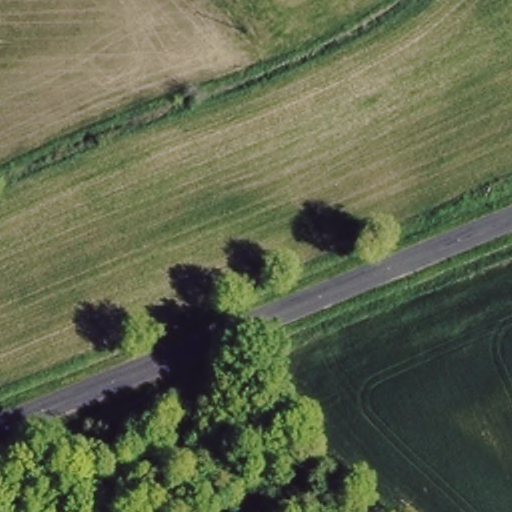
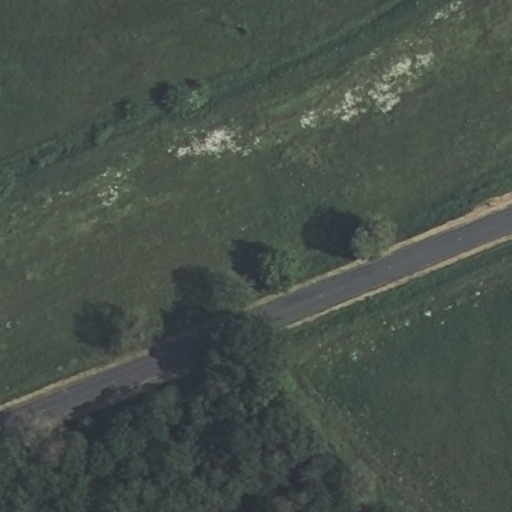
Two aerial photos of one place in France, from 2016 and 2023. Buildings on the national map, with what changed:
unchanged [(201,462),(227,447),(248,481),(224,497),(201,462)]

